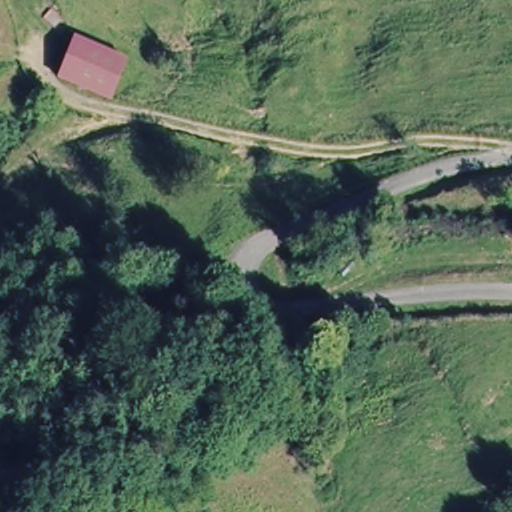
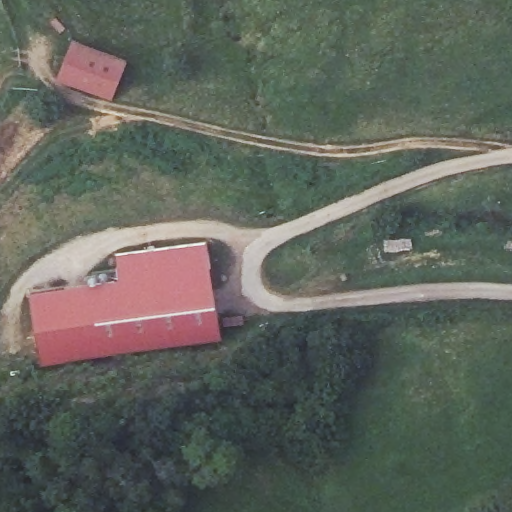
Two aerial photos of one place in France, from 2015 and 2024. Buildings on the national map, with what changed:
unchanged [(76,38),(126,60),(112,95),(63,73),(76,38)]
new [(222,342),(40,367),(30,291),(121,277),(117,254),(207,242),(222,342)]

